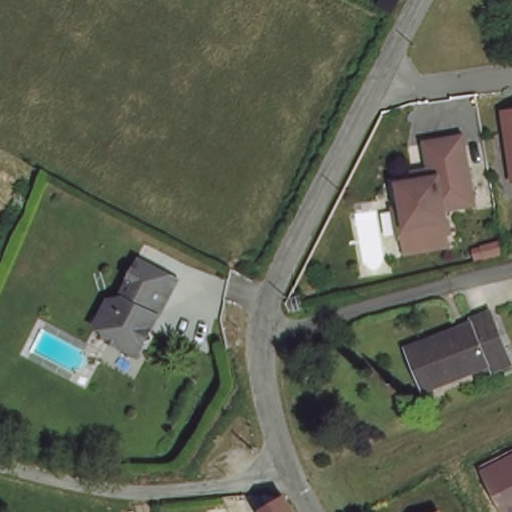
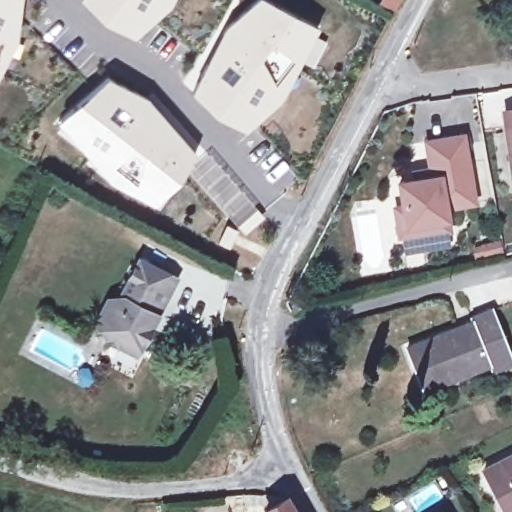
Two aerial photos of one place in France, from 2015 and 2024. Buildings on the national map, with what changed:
new [(21,0),(15,41),(0,71),(0,0),(21,0)]
new [(134,37),(105,22),(80,0),(173,0),(170,7),(134,37)]
new [(217,72),(235,48),(223,37),(226,27),(235,19),(244,14),(257,0),(267,0),(312,25),(288,54),(299,63),(296,70),(280,100),(245,130),(198,97),(192,92),(207,64),(217,72)]
new [(107,78),(147,99),(195,155),(179,182),(152,204),(111,182),(58,121),(107,78)]
unchanged [(512,115),(512,175),(504,117),(512,115)]
unchanged [(432,240),(431,236),(404,241),(400,213),(408,212),(404,187),(421,185),(420,177),(435,174),(431,147),(467,141),(478,208),(450,212),(451,224),(453,236),(432,240)]
unchanged [(152,312),(148,320),(151,327),(135,355),(109,340),(105,330),(93,325),(107,300),(120,308),(126,297),(118,293),(138,257),(179,280),(160,312),(152,312)]
unchanged [(491,372),(489,365),(440,383),(439,380),(422,387),(407,348),(473,323),(471,319),(491,311),(511,363),(491,372)]
unchanged [(481,471),(512,455),(512,512),(502,512),(481,471)]
unchanged [(264,511),(286,497),(295,512),(265,512),(264,511)]
new [(441,509),(443,512),(436,512),(441,509)]

